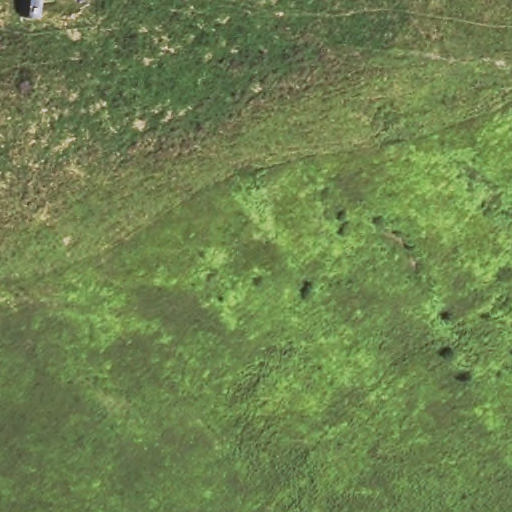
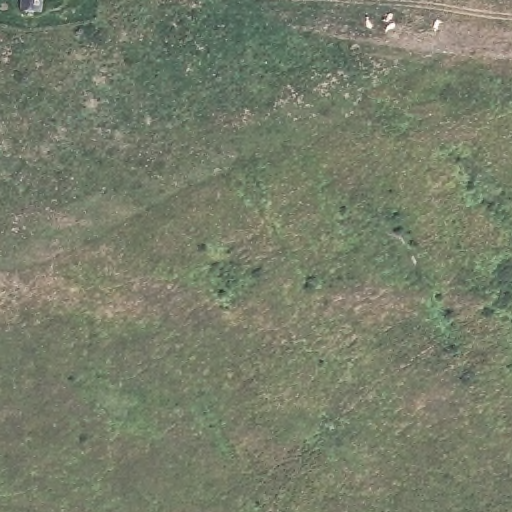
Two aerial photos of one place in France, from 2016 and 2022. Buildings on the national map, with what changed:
unchanged [(25,0),(48,0),(48,16),(25,15),(25,0)]

